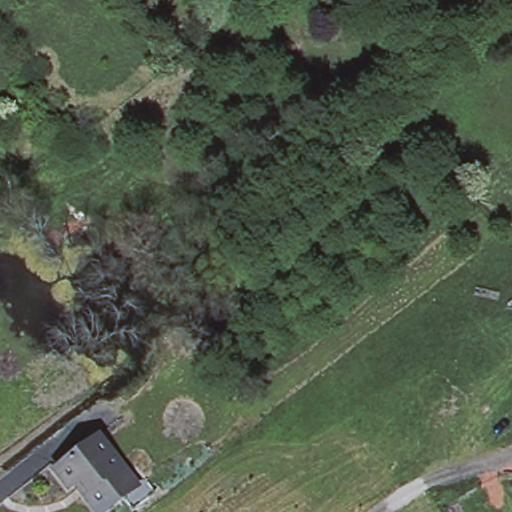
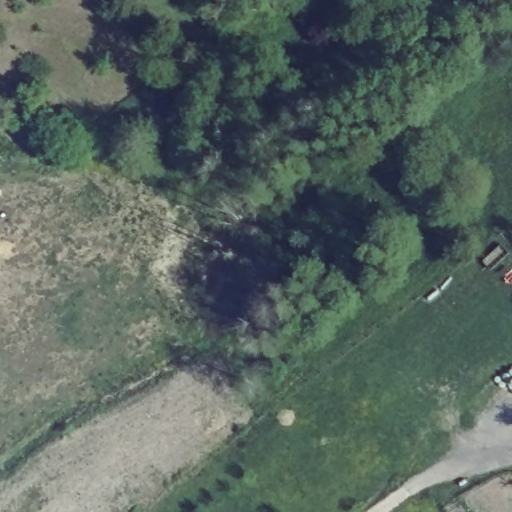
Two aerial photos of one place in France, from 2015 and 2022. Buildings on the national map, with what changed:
demolished [(62,493),(47,471),(97,434),(140,492),(113,512),(90,512),(73,486),(62,493)]

